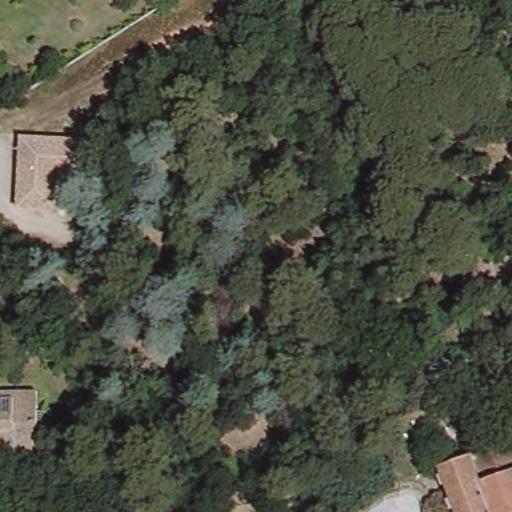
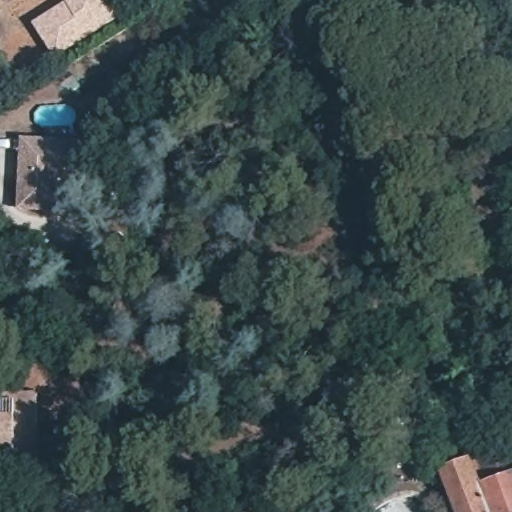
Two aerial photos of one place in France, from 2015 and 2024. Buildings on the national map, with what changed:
new [(108,0),(119,18),(55,58),(31,22),(64,0),(108,0)]
unchanged [(21,136),(94,140),(91,181),(60,179),(59,211),(18,209),(21,136)]
unchanged [(487,250),(499,276),(473,286),(463,262),(487,250)]
unchanged [(344,283),(360,308),(336,317),(325,293),(344,283)]
unchanged [(8,394),(8,404),(44,403),(48,469),(25,470),(27,480),(14,480),(13,462),(0,460),(0,387),(8,394)]
unchanged [(504,439),(512,436),(512,446),(476,457),(474,450),(504,439)]
unchanged [(497,512),(458,512),(443,470),(476,457),(487,481),(488,483),(497,512)]
unchanged [(488,483),(487,481),(512,472),(512,512),(497,512),(488,483)]

